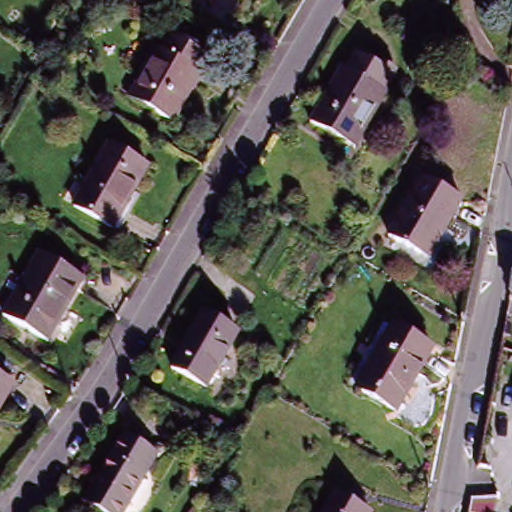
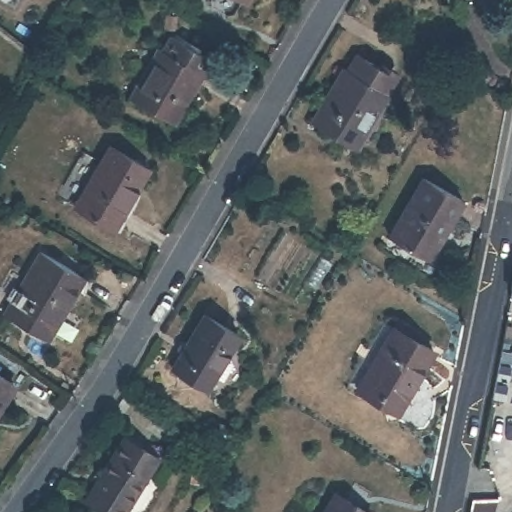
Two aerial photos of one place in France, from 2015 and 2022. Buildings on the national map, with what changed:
unchanged [(248,4),(242,0),(250,0),(248,4)]
unchanged [(177,125),(133,100),(159,52),(164,54),(173,37),(214,60),(177,125)]
unchanged [(342,66),(387,91),(356,146),(311,122),(342,66)]
unchanged [(116,230),(79,209),(113,150),(150,171),(116,230)]
unchanged [(424,179),(464,200),(431,260),(391,238),(424,179)]
unchanged [(86,275),(50,337),(8,313),(43,251),(86,275)]
unchanged [(397,416),(359,394),(396,331),(402,322),(424,335),(419,345),(434,354),(397,416)]
unchanged [(235,343),(207,390),(175,370),(203,325),(235,343)]
unchanged [(0,416),(0,376),(18,388),(0,416)]
unchanged [(96,512),(83,504),(117,445),(118,445),(119,441),(132,448),(130,452),(153,465),(126,512),(96,512)]
unchanged [(202,473),(199,487),(192,486),(194,472),(202,473)]
unchanged [(323,512),(334,495),(363,512),(323,512)]
unchanged [(495,512),(470,512),(472,500),(498,500),(495,512)]

